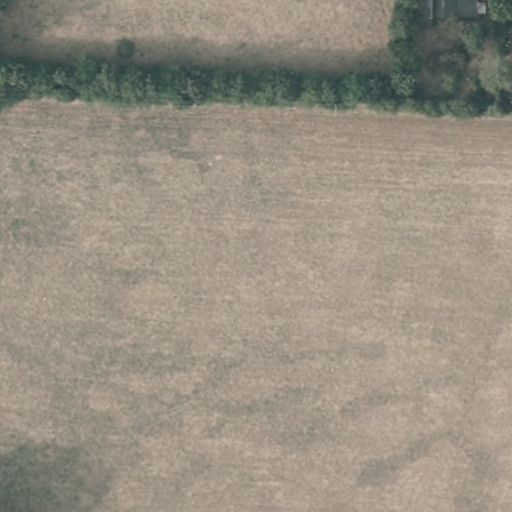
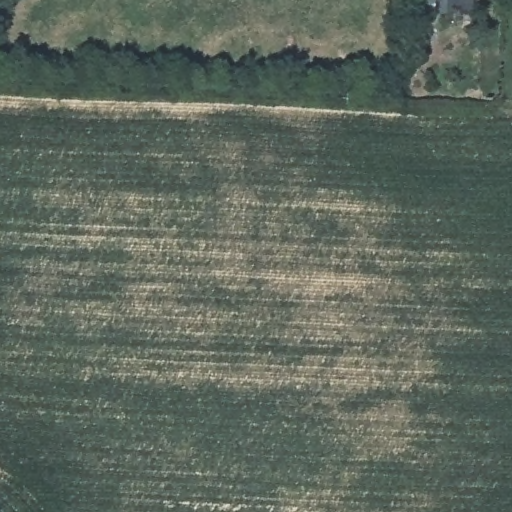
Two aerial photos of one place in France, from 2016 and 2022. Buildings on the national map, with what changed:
unchanged [(438,22),(438,0),(481,0),(481,22),(438,22)]

